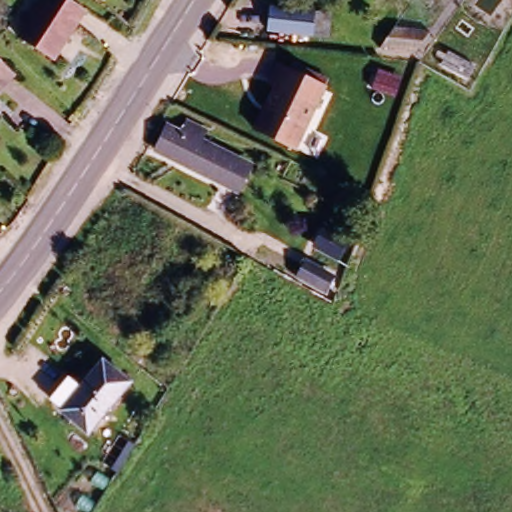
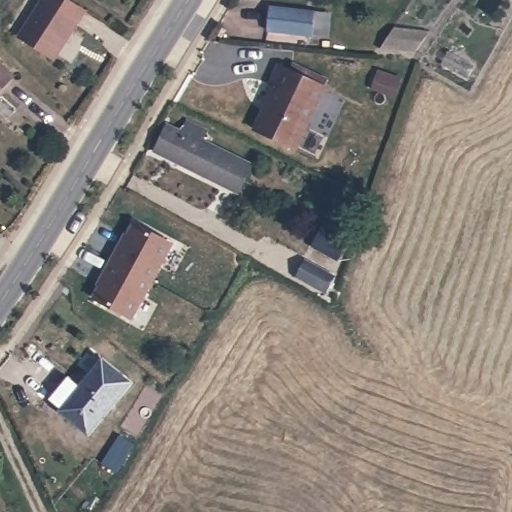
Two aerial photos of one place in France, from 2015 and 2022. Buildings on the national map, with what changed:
unchanged [(84,17),(55,67),(17,46),(44,0),(54,0),(84,17)]
unchanged [(262,8),(309,11),(309,35),(260,33),(262,8)]
unchanged [(14,74),(0,90),(0,62),(14,74)]
unchanged [(320,86),(296,149),(253,132),(271,88),(265,86),(273,67),(320,86)]
unchanged [(0,119),(0,114),(3,116),(0,119)]
unchanged [(149,151),(157,132),(167,138),(175,123),(195,133),(191,145),(203,150),(193,173),(149,151)]
unchanged [(203,150),(243,169),(231,194),(193,173),(203,150)]
new [(106,277),(104,276),(121,245),(123,246),(135,224),(172,244),(132,319),(94,299),(106,277)]
unchanged [(306,270),(333,284),(326,297),(299,284),(306,270)]
demolished [(288,282),(315,296),(308,309),(281,296),(288,282)]
unchanged [(55,411),(74,389),(86,400),(110,372),(137,395),(94,446),(67,423),(68,422),(55,411)]

